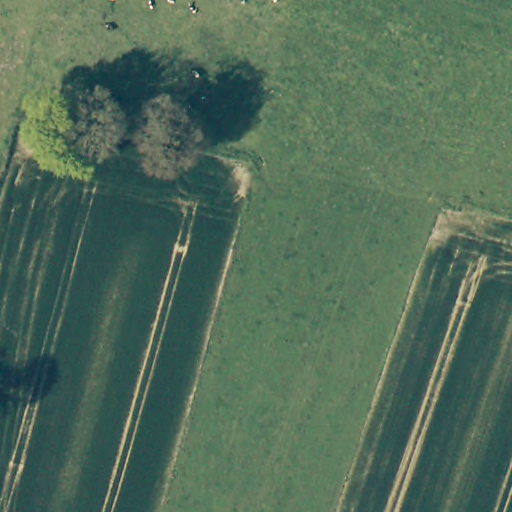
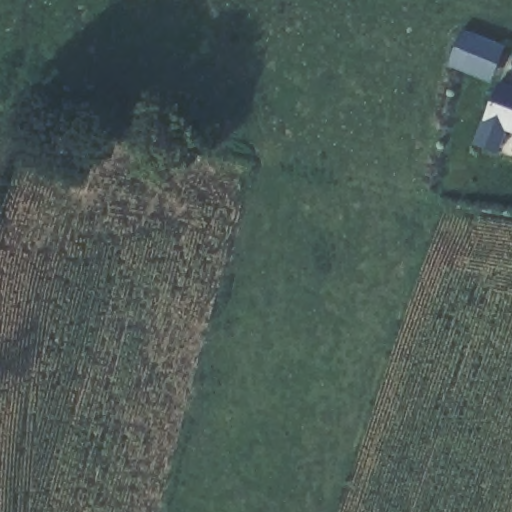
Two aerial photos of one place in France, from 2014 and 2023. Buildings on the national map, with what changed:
new [(491,83),(449,66),(465,29),(507,46),(491,83)]
new [(512,86),(512,133),(507,132),(498,154),(474,143),(500,82),(512,86)]

